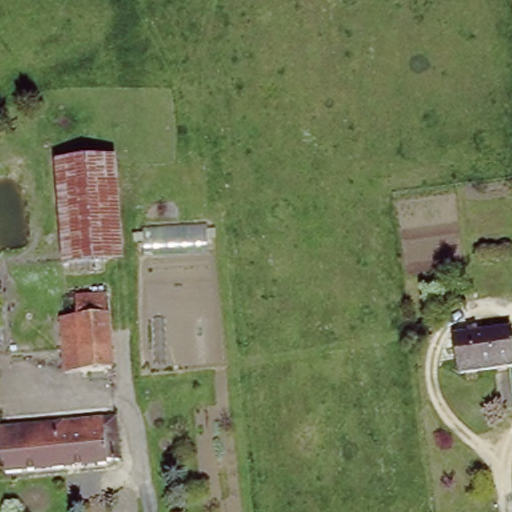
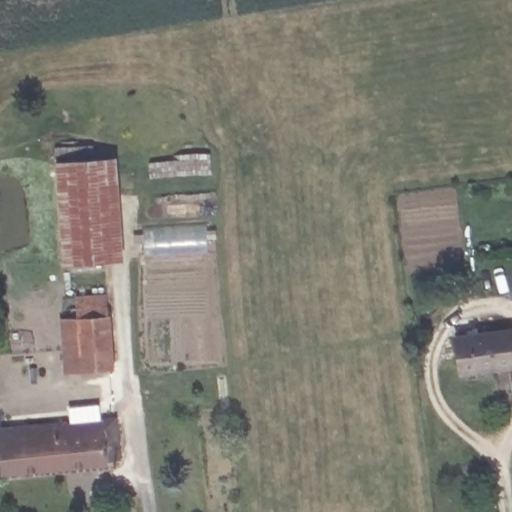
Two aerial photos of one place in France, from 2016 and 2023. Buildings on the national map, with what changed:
unchanged [(119,161),(123,257),(67,262),(60,165),(119,161)]
unchanged [(81,320),(81,298),(111,296),(116,370),(72,373),(69,320),(81,320)]
unchanged [(507,333),(511,366),(456,373),(453,340),(507,333)]
unchanged [(116,460),(105,461),(105,468),(0,478),(0,435),(114,425),(116,460)]

